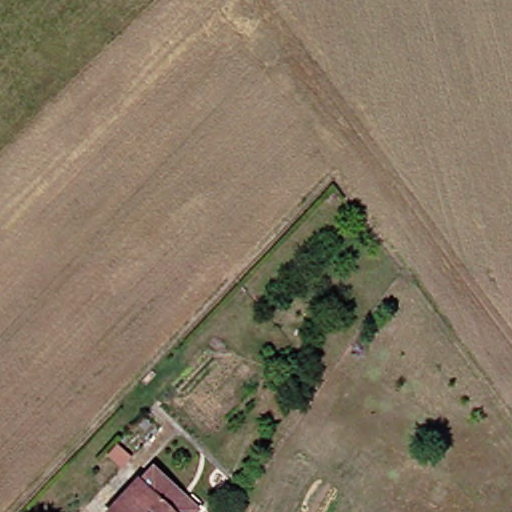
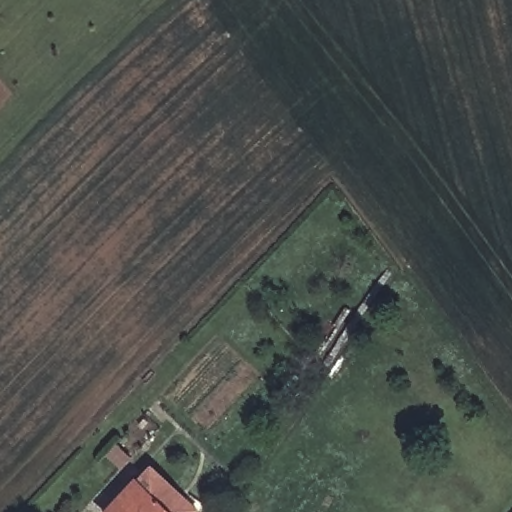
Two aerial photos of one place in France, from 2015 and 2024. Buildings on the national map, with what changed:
unchanged [(149,471),(193,511),(192,512),(106,512),(136,480),(139,482),(149,471)]

